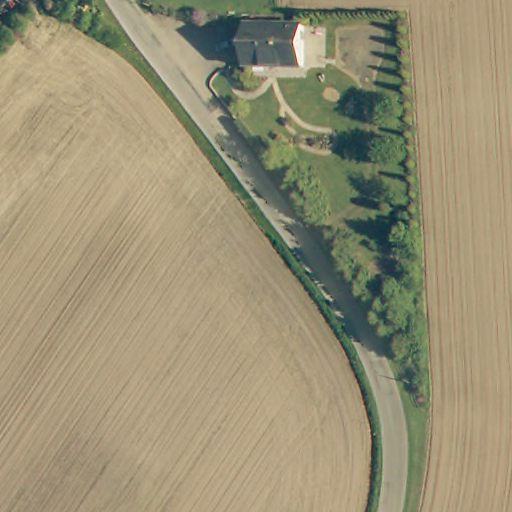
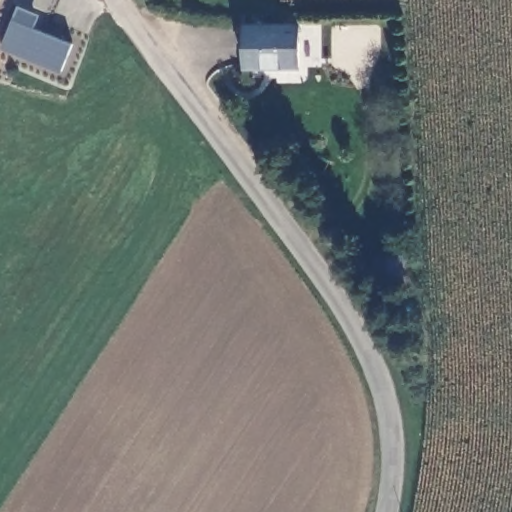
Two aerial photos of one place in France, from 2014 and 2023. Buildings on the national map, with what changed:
new [(64,70),(3,46),(20,4),(40,13),(35,27),(74,43),(64,70)]
unchanged [(303,27),(297,63),(242,59),(248,18),(303,27)]

